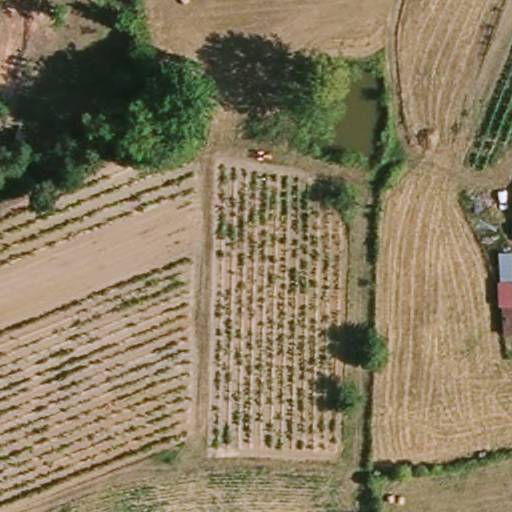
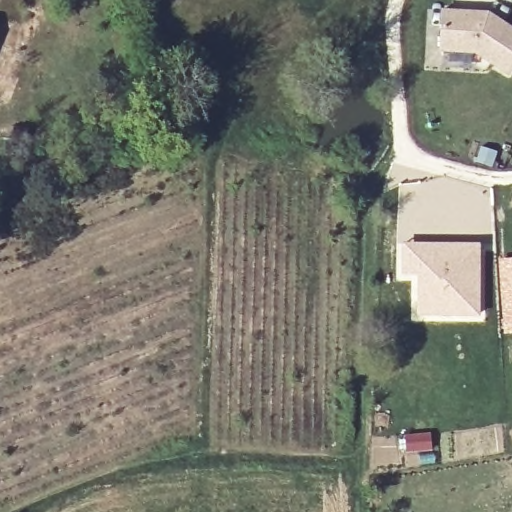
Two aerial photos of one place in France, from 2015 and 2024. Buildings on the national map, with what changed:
new [(445,7),(490,10),(512,24),(512,69),(511,72),(478,50),(443,47),(445,7)]
new [(401,242),(478,243),(477,315),(416,315),(417,275),(401,275),(401,242)]
unchanged [(498,280),(512,280),(512,300),(499,300),(498,280)]

